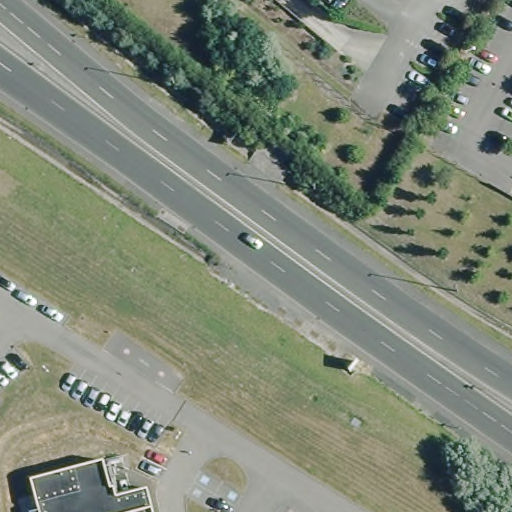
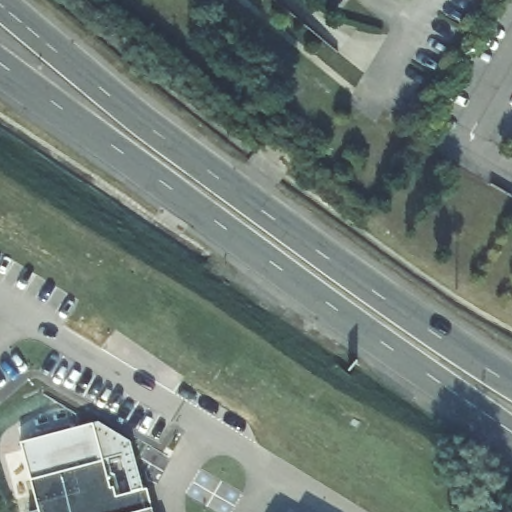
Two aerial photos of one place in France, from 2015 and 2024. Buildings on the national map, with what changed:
new [(19,441),(99,420),(131,442),(143,489),(117,496),(103,461),(31,480),(19,441)]
unchanged [(31,480),(103,461),(117,496),(147,488),(151,510),(142,512),(33,512),(38,511),(31,480)]
unchanged [(143,512),(152,510),(152,512),(143,512)]

